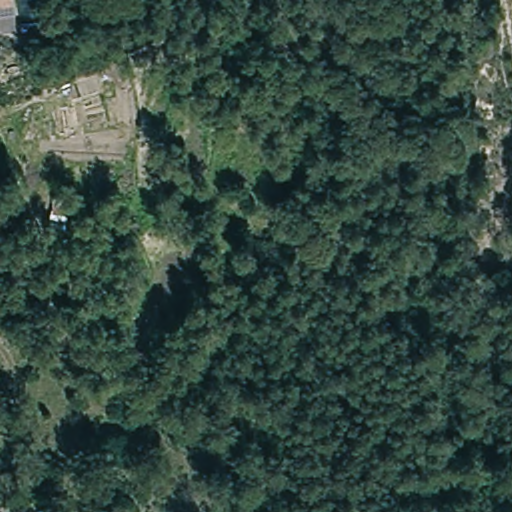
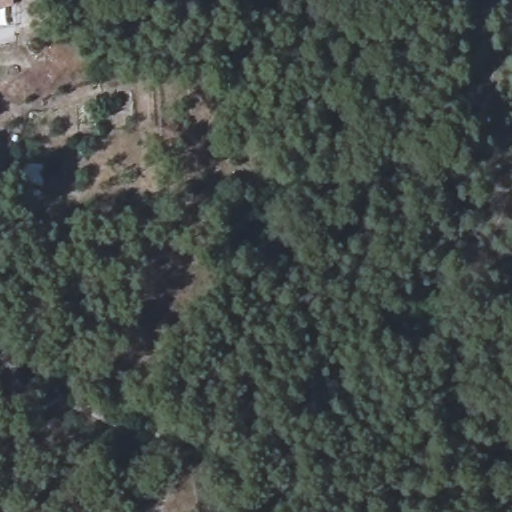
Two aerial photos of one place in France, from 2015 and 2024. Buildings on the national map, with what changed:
unchanged [(0,0),(13,0),(16,29),(0,31),(0,0)]

